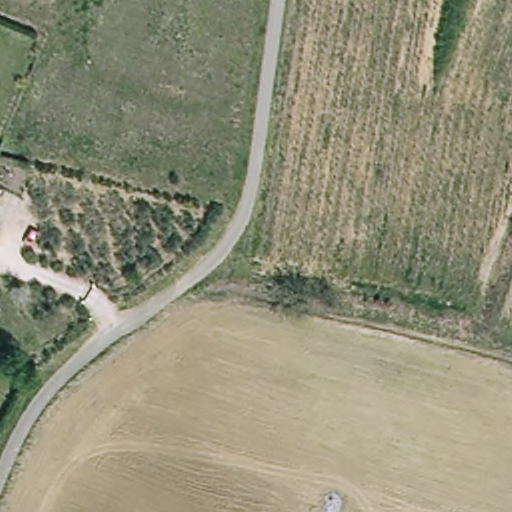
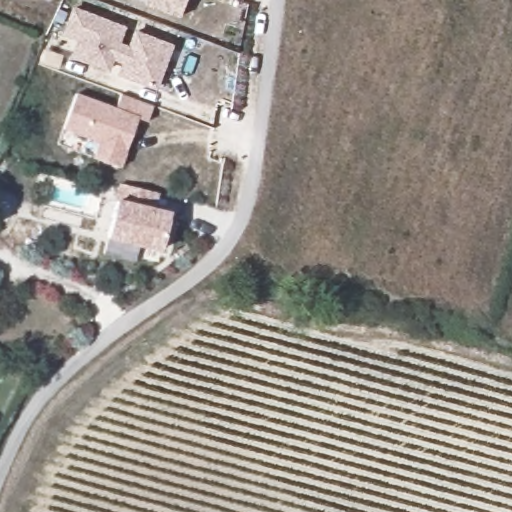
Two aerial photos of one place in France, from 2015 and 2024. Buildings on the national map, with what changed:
new [(148,5),(150,0),(190,0),(184,17),(148,5)]
new [(74,6),(125,24),(119,39),(131,44),(137,28),(173,41),(158,83),(122,70),(126,58),(114,54),(110,66),(75,53),(80,36),(66,31),(74,6)]
new [(122,94),(153,106),(147,120),(139,118),(120,167),(92,157),(97,142),(63,130),(77,93),(116,108),(122,94)]
new [(121,182),(158,192),(153,209),(169,214),(159,250),(106,235),(121,182)]

